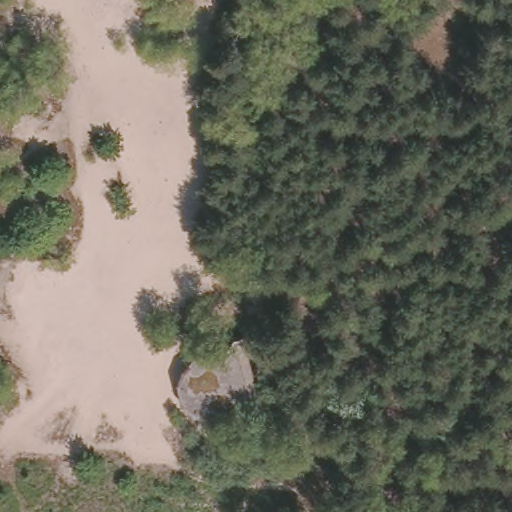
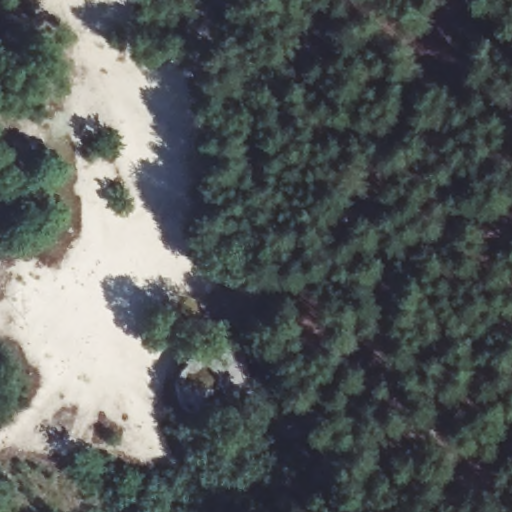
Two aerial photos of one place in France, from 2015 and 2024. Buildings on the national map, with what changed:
unchanged [(263,417),(251,408),(208,421),(183,410),(178,380),(192,351),(233,342),(241,330),(263,417)]

